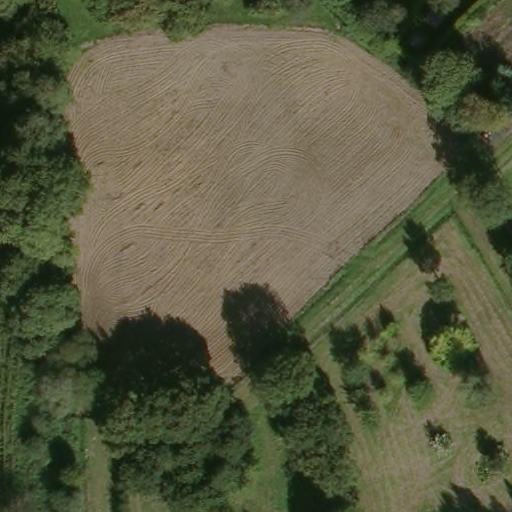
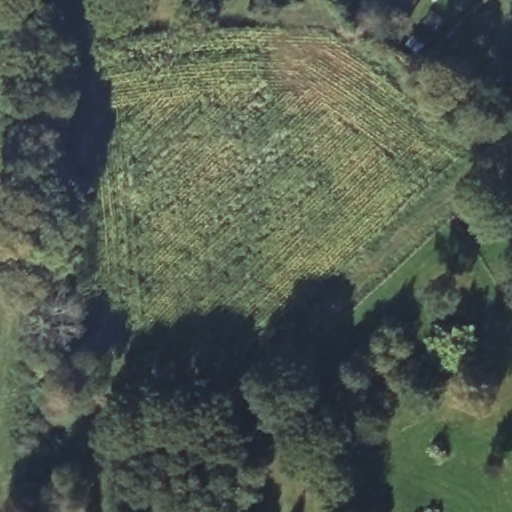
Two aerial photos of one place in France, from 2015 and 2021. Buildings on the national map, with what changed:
unchanged [(459,62),(488,85),(471,105),(443,81),(459,62)]

